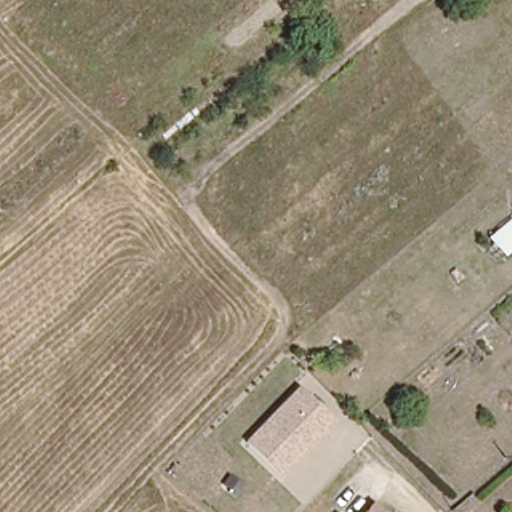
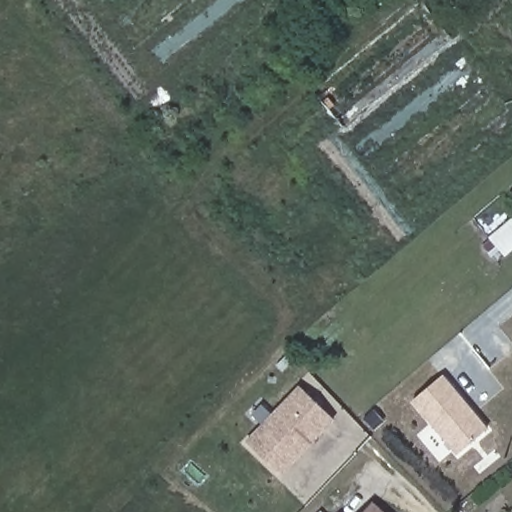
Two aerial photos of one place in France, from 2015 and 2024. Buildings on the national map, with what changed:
new [(411,401),(444,374),(489,428),(456,455),(411,401)]
unchanged [(333,421),(281,476),(246,440),(298,388),(333,421)]
unchanged [(380,512),(367,512),(372,506),(380,512)]

